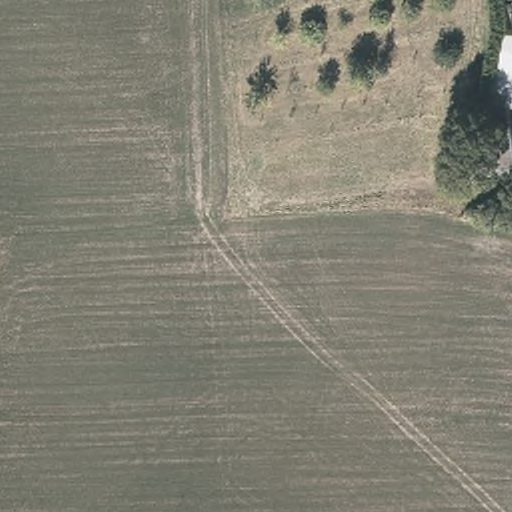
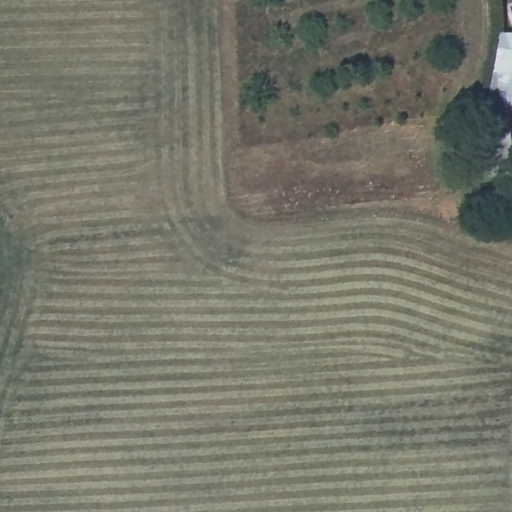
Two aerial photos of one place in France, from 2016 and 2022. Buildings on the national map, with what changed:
unchanged [(512,115),(512,134),(488,138),(478,101),(504,97),(512,115)]

